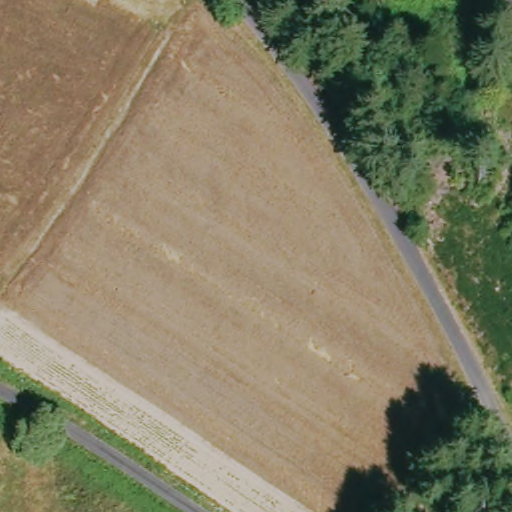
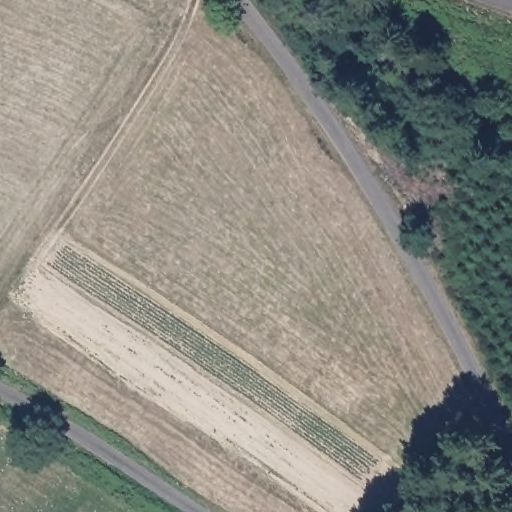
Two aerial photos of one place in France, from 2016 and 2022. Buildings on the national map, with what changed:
[]

